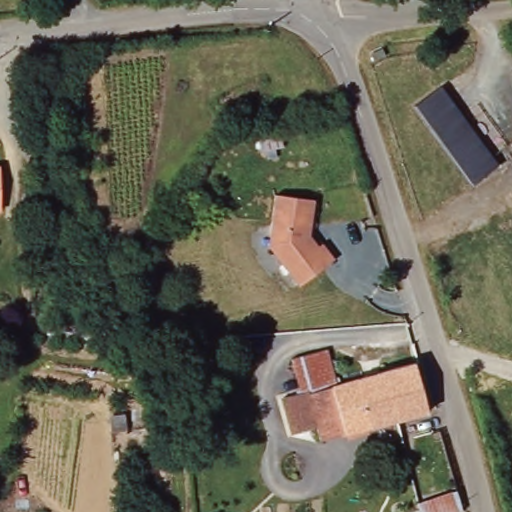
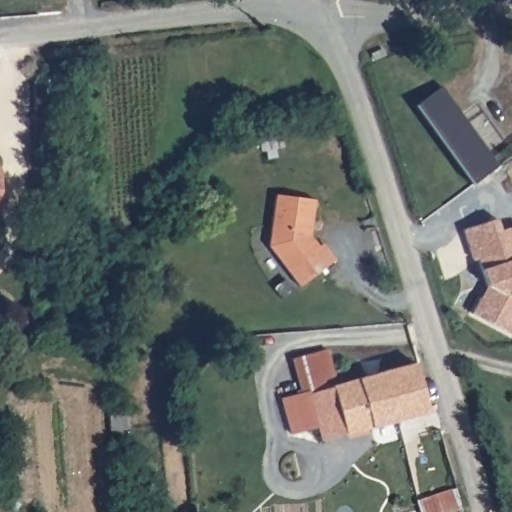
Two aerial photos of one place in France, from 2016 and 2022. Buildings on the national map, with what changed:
unchanged [(438,86),(496,169),(469,190),(410,106),(438,86)]
unchanged [(317,206),(313,239),(320,246),(324,241),(338,256),(305,287),(271,252),(276,201),(317,206)]
new [(508,224),(512,237),(512,256),(511,257),(512,260),(512,310),(500,335),(461,316),(476,286),(467,258),(462,260),(452,230),(485,218),(489,230),(508,224)]
unchanged [(307,395),(297,358),(332,347),(344,383),(420,362),(431,410),(328,440),(325,427),(305,431),(296,398),(307,395)]
unchanged [(453,487),(460,509),(451,512),(420,512),(416,500),(453,487)]

